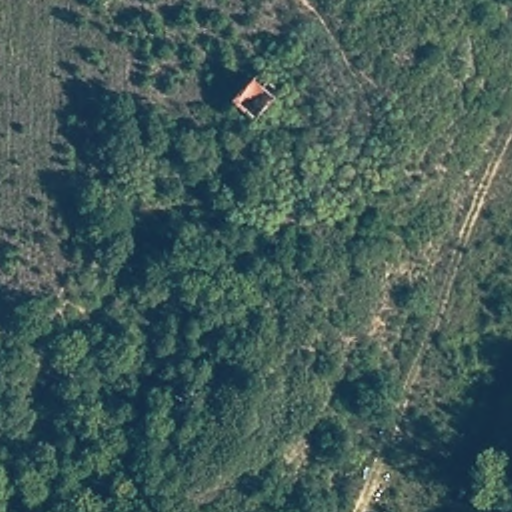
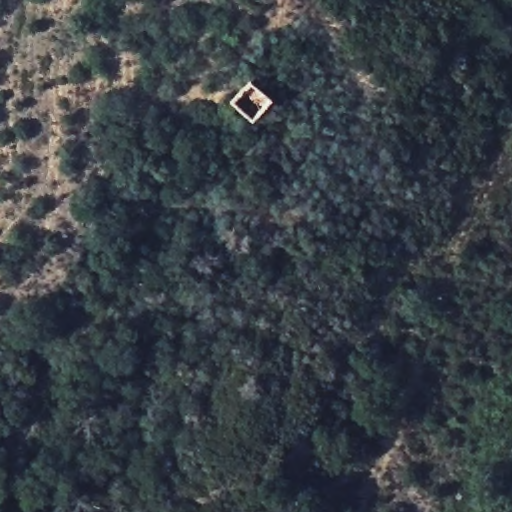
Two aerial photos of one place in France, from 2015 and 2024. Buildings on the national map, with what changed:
unchanged [(248,81),(270,100),(251,123),(228,104),(248,81)]

